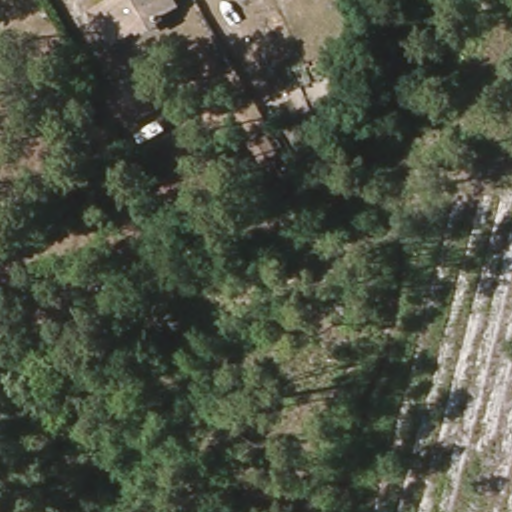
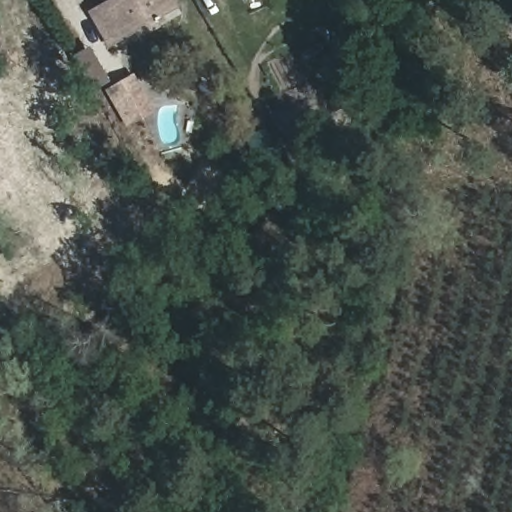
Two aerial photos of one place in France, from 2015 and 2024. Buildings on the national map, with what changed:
unchanged [(90,15),(114,0),(172,0),(177,9),(113,50),(90,15)]
new [(135,74),(152,105),(130,119),(112,88),(135,74)]

